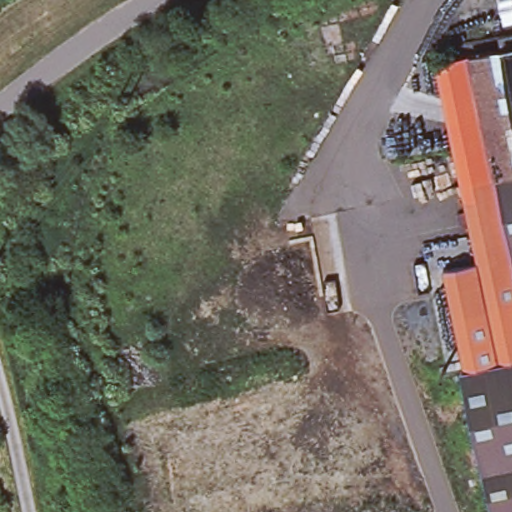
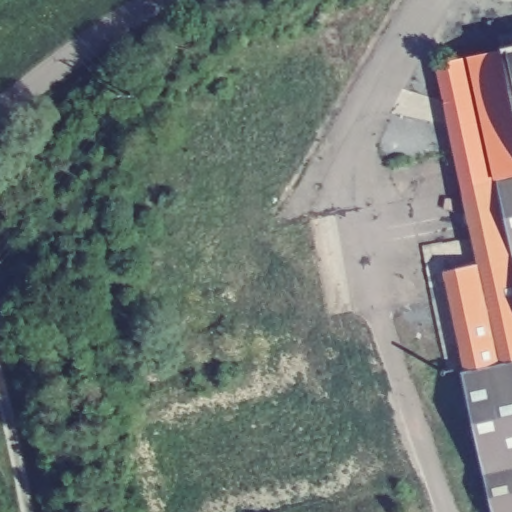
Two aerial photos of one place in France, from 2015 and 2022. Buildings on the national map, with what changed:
unchanged [(481,106),(470,56),(503,48),(500,36),(512,33),(512,175),(497,178),(481,106)]
unchanged [(436,63),(470,56),(481,106),(497,178),(462,186),(436,63)]
unchanged [(512,175),(512,249),(497,178),(512,175)]
unchanged [(512,249),(512,254),(480,261),(474,236),(462,186),(497,178),(512,249)]
unchanged [(435,297),(423,248),(474,236),(480,261),(445,269),(450,293),(435,297)]
unchanged [(480,261),(512,254),(512,360),(468,370),(450,293),(445,269),(480,261)]
unchanged [(468,370),(512,360),(512,512),(491,512),(462,371),(468,370)]

